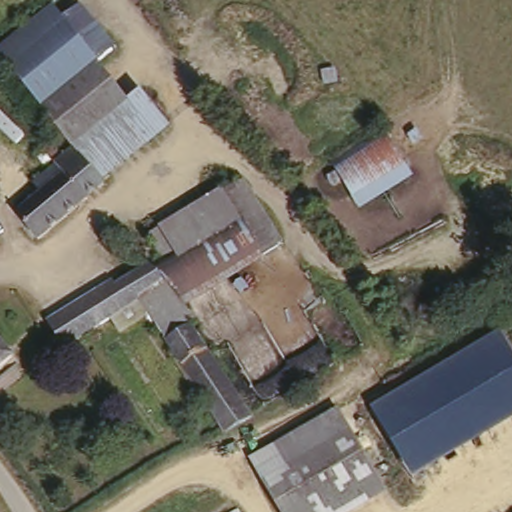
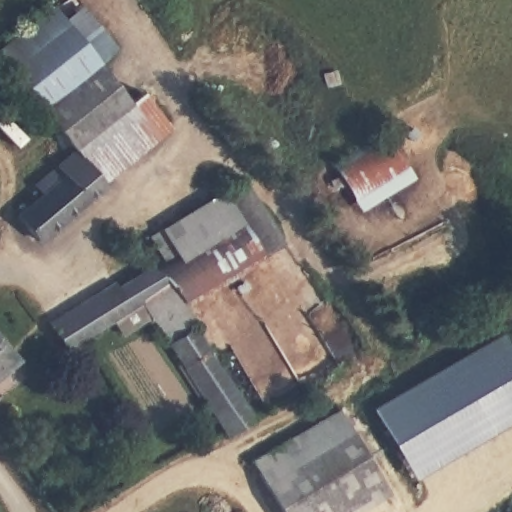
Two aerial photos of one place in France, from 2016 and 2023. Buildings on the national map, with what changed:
unchanged [(65,136),(64,137),(61,140),(0,57),(0,45),(54,6),(63,18),(81,4),(119,46),(99,64),(128,101),(142,89),(171,129),(105,181),(65,136)]
unchanged [(358,211),(328,163),(383,130),(417,173),(358,211)]
unchanged [(37,235),(16,208),(36,190),(20,172),(45,152),(64,137),(65,136),(105,181),(37,235)]
unchanged [(282,238),(258,254),(215,190),(239,175),(282,238)]
unchanged [(174,310),(143,264),(168,246),(157,230),(207,195),(215,190),(258,254),(245,262),(174,310)]
unchanged [(37,318),(105,277),(111,285),(143,264),(174,310),(186,327),(181,331),(195,351),(243,422),(223,435),(172,360),(164,345),(130,298),(50,342),(37,318)]
unchanged [(512,421),(413,480),(371,408),(500,333),(512,352),(512,421)]
unchanged [(9,350),(0,357),(0,341),(9,350)]
unchanged [(383,482),(337,512),(284,512),(259,472),(344,416),(383,482)]

